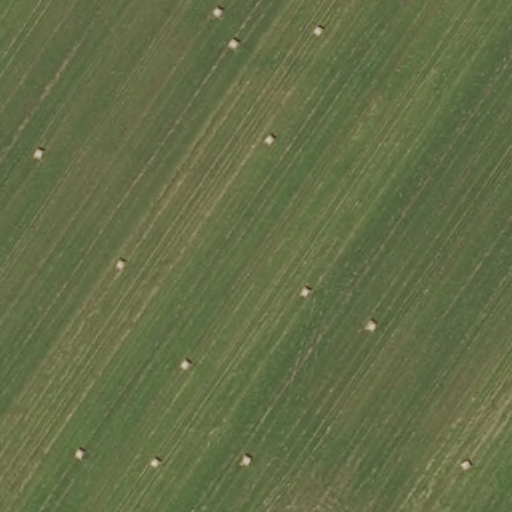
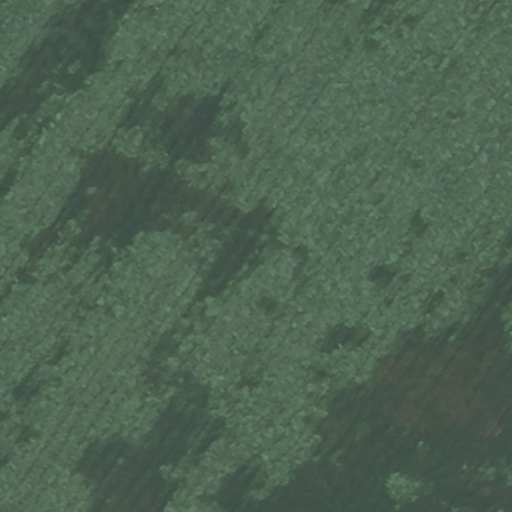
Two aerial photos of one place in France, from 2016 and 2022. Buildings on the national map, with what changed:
[]

